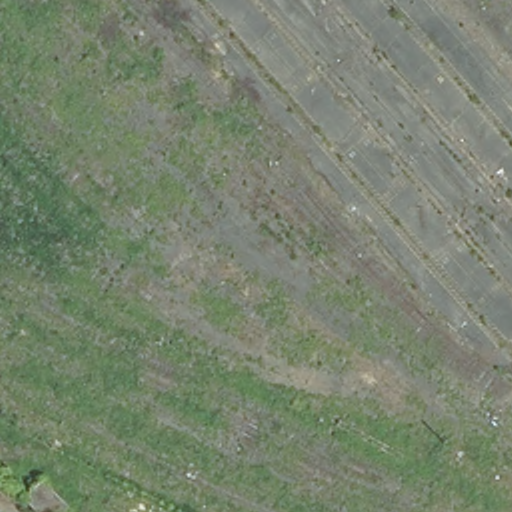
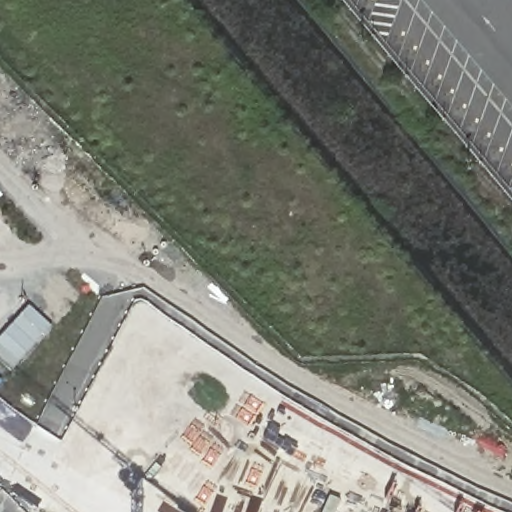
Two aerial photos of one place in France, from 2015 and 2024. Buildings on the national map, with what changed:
new [(10,371),(0,362),(0,335),(28,305),(51,326),(10,371)]
demolished [(44,470),(69,496),(52,512),(47,512),(25,490),(44,470)]

